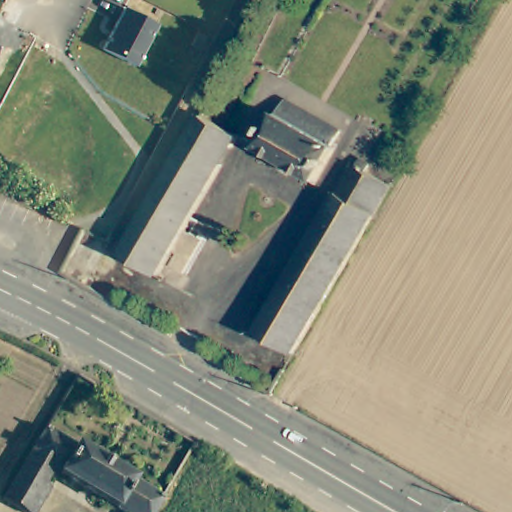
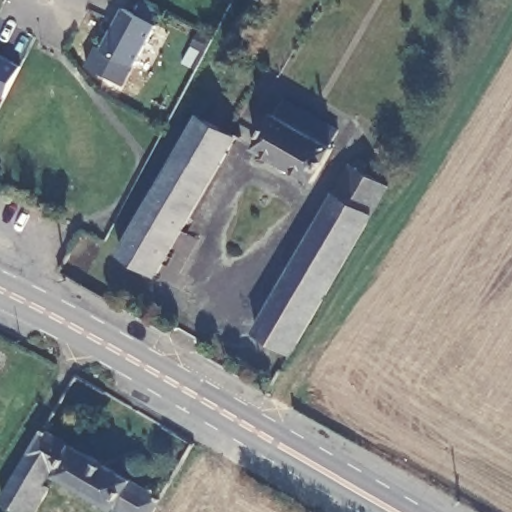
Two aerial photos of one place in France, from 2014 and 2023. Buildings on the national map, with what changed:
unchanged [(159,24),(136,67),(104,50),(125,8),(159,24)]
unchanged [(0,50),(0,48),(1,48),(0,50)]
unchanged [(278,113),(286,98),(340,130),(332,144),(335,146),(316,180),(258,147),(278,113)]
unchanged [(238,135),(158,274),(122,253),(202,115),(238,135)]
unchanged [(359,164),(361,165),(365,157),(374,162),(369,170),(395,185),(298,352),(262,331),(359,164)]
unchanged [(156,512),(104,512),(50,480),(41,494),(46,497),(37,512),(4,512),(0,510),(0,509),(41,438),(159,507),(156,512)]

